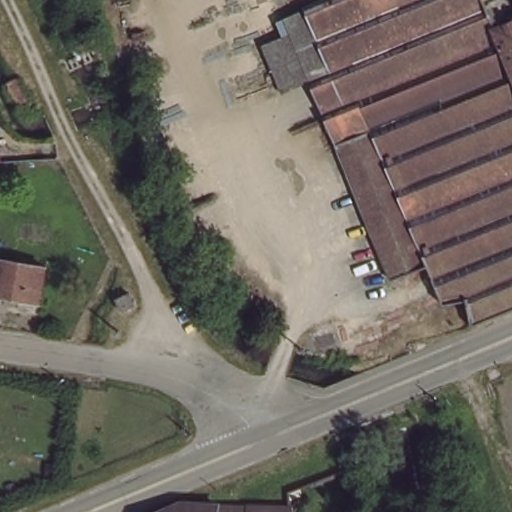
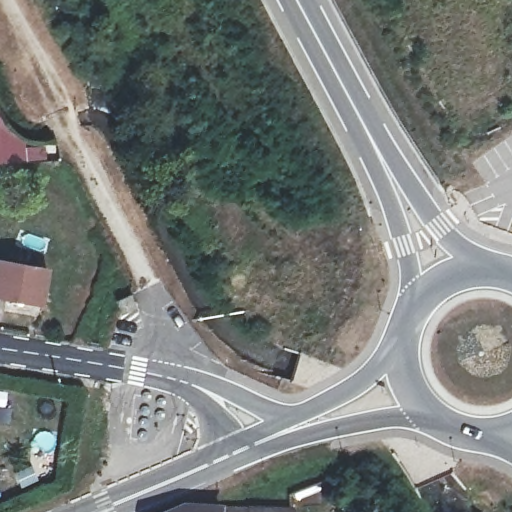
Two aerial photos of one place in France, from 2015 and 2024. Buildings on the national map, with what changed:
demolished [(499,28),(496,30),(512,69),(512,308),(490,317),(477,322),(467,297),(442,302),(427,265),(392,279),(362,204),(316,96),(311,85),(291,38),(285,25),(297,19),(295,14),(328,0),(486,0),(499,28)]
demolished [(512,14),(512,69),(496,30),(499,28),(486,0),(506,0),(512,14)]
new [(24,161),(0,162),(0,129),(22,142),(24,161)]
unchanged [(44,302),(0,295),(0,256),(49,263),(44,302)]
unchanged [(130,316),(124,302),(139,296),(145,309),(135,314),(130,316)]
unchanged [(320,512),(138,512),(170,498),(321,508),(320,512)]

